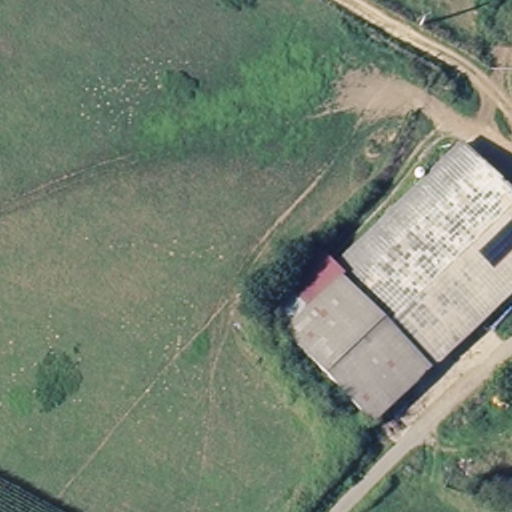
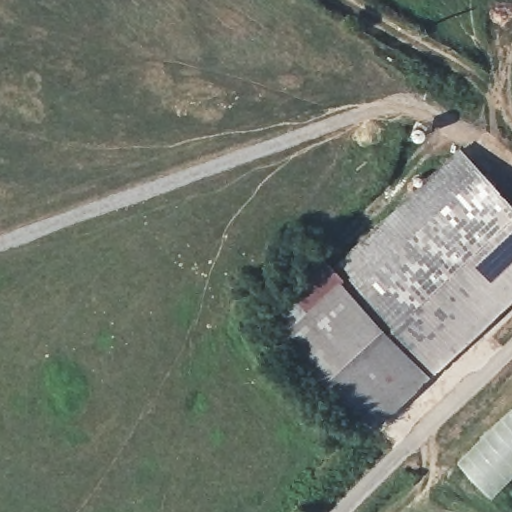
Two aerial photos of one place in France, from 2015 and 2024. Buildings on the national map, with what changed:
unchanged [(342,273),(466,143),(489,166),(366,295),(351,281),(342,273)]
unchanged [(512,188),(512,291),(440,365),(366,295),(489,166),(512,188)]
unchanged [(342,282),(282,335),(253,309),(315,251),(332,271),(342,282)]
unchanged [(295,342),(351,281),(366,295),(440,365),(380,425),(295,342)]
new [(483,433),(512,405),(512,477),(491,497),(455,462),(483,433)]

